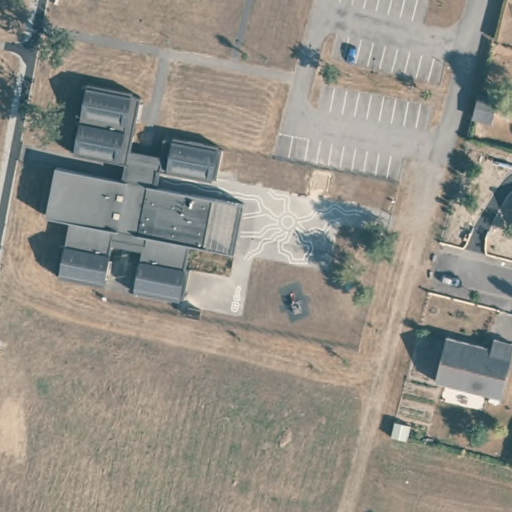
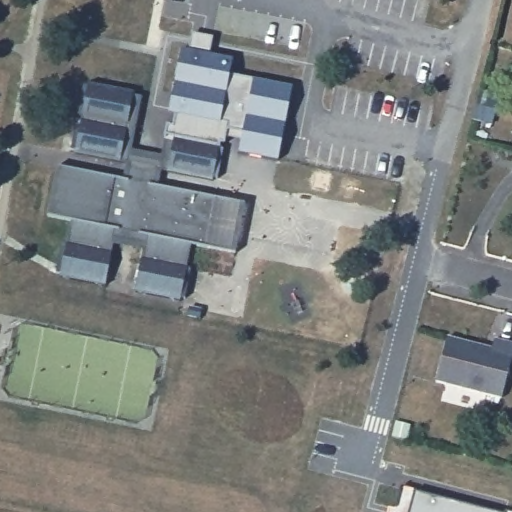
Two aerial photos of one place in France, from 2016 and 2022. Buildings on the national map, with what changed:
new [(236,154),(238,150),(224,146),(220,146),(220,142),(175,135),(175,138),(166,137),(163,137),(165,124),(171,125),(173,116),(167,115),(181,49),(187,50),(190,34),(211,37),(207,53),(233,59),(230,76),(292,87),(278,162),(236,154)]
unchanged [(60,169),(129,180),(131,164),(76,155),(77,152),(72,152),(82,90),(87,91),(87,87),(134,95),(133,98),(141,100),(133,154),(162,159),(166,137),(175,138),(175,135),(220,142),(220,146),(224,146),(220,176),(215,175),(215,178),(160,169),(158,185),(216,195),(207,245),(192,242),(189,266),(193,267),(188,296),(184,296),(183,298),(137,291),(145,246),(115,241),(108,286),(62,278),(63,276),(59,275),(64,246),(68,246),(70,239),(72,222),(52,219),(60,169)]
unchanged [(496,100),(490,122),(471,117),(477,94),(496,100)]
unchanged [(216,195),(245,199),(236,250),(207,245),(216,195)]
unchanged [(512,352),(503,391),(437,374),(447,337),(485,346),(493,348),(496,332),(512,336),(512,352)]

